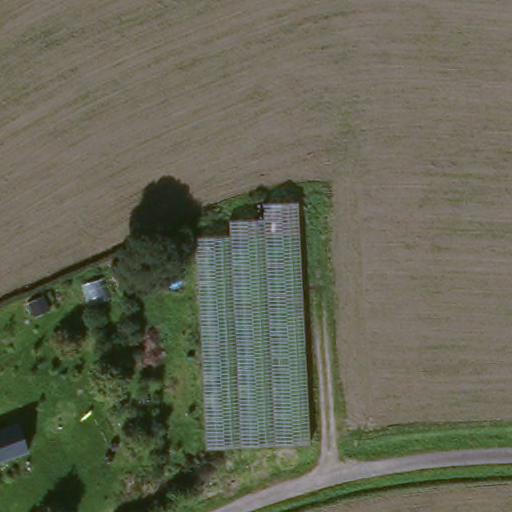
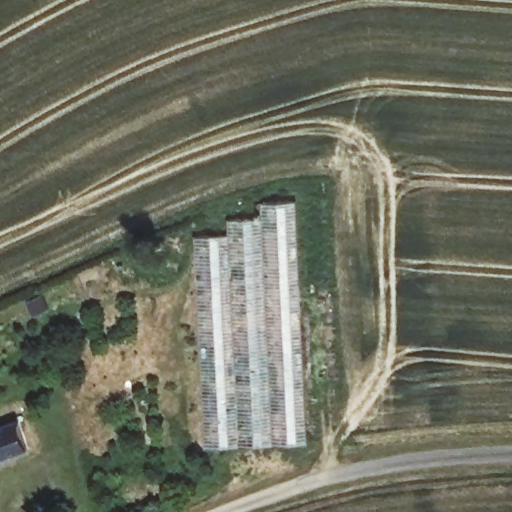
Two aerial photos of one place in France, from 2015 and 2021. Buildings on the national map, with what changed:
unchanged [(213,251),(214,228),(244,228),(244,216),(278,215),(283,272),(293,451),(193,459),(179,250),(213,251)]
unchanged [(29,451),(0,463),(0,432),(18,424),(29,451)]

